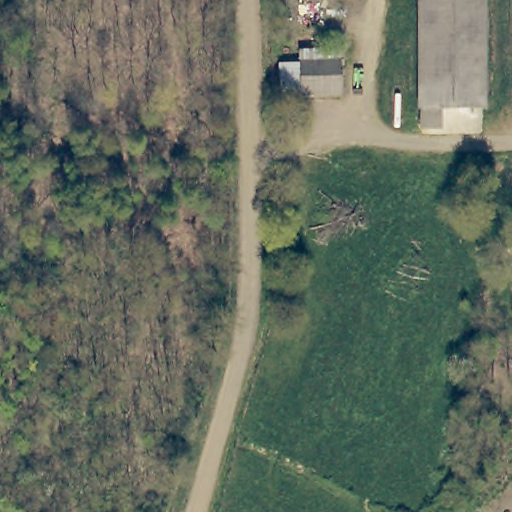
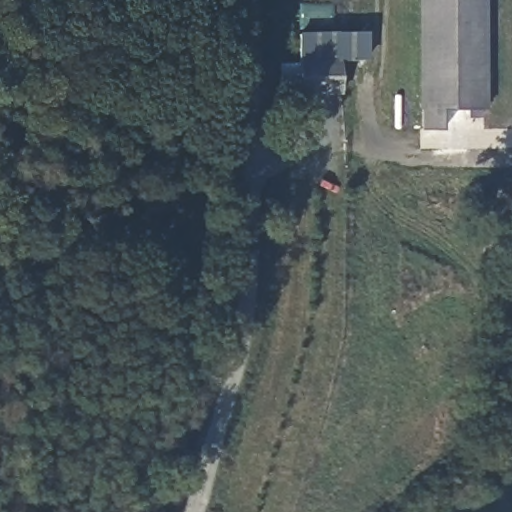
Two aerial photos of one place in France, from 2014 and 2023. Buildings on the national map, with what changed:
unchanged [(478,119),(440,112),(440,129),(420,129),(421,0),(480,0),(478,119)]
new [(370,56),(343,55),(302,56),(297,56),(298,32),(368,31),(370,56)]
unchanged [(344,88),(303,89),(302,56),(343,55),(344,88)]

